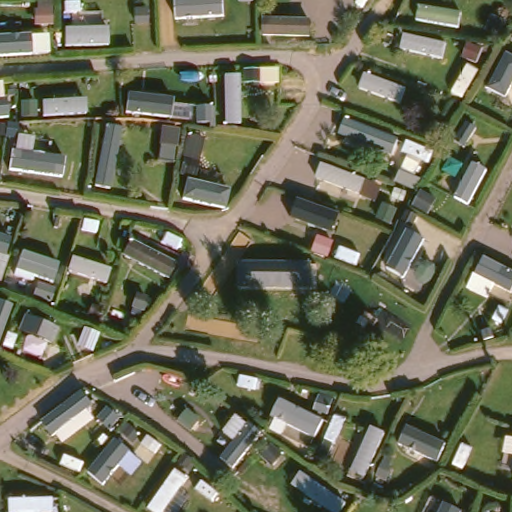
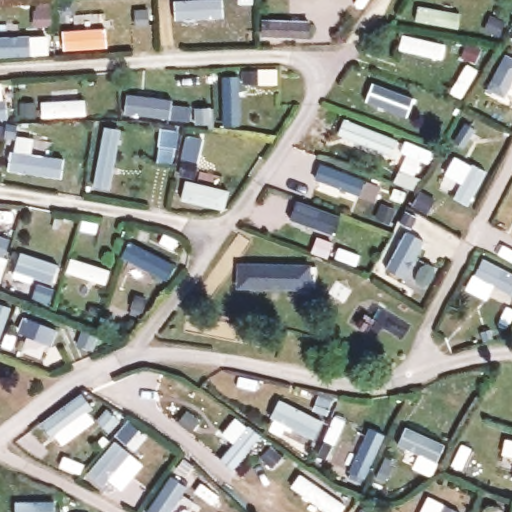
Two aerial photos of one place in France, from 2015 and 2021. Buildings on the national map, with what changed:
unchanged [(307,260),(308,286),(236,286),(235,260),(307,260)]

